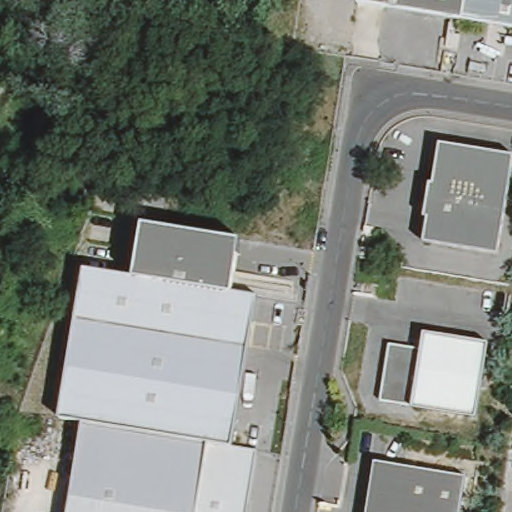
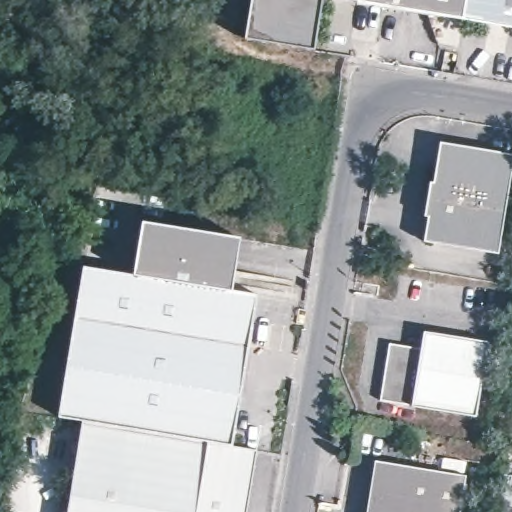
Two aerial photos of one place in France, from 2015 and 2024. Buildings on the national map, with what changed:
new [(315,49),(246,38),(252,0),(322,0),(315,49)]
new [(361,1),(359,0),(362,0),(361,1)]
unchanged [(440,12),(368,0),(442,0),(440,12)]
unchanged [(442,0),(512,0),(512,24),(440,12),(442,0)]
unchanged [(428,214),(425,213),(431,174),(437,175),(440,136),(512,148),(512,188),(501,253),(424,240),(428,214)]
unchanged [(61,415),(85,264),(135,271),(143,218),(246,236),(234,287),(262,291),(237,442),(261,446),(249,512),(69,512),(85,419),(61,415)]
unchanged [(380,398),(389,341),(421,346),(423,329),(488,339),(476,414),(380,398)]
unchanged [(370,512),(380,454),(393,456),(465,468),(458,512),(370,512)]

